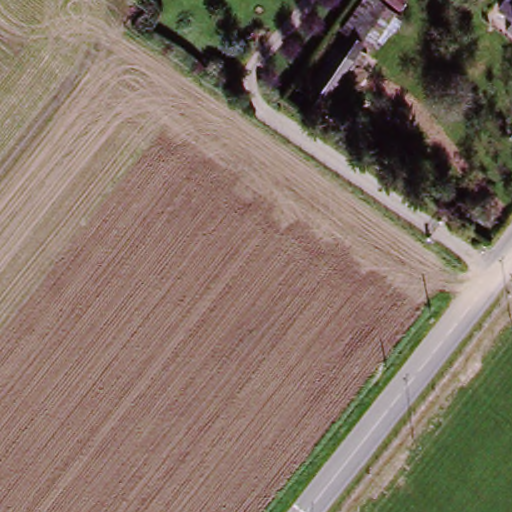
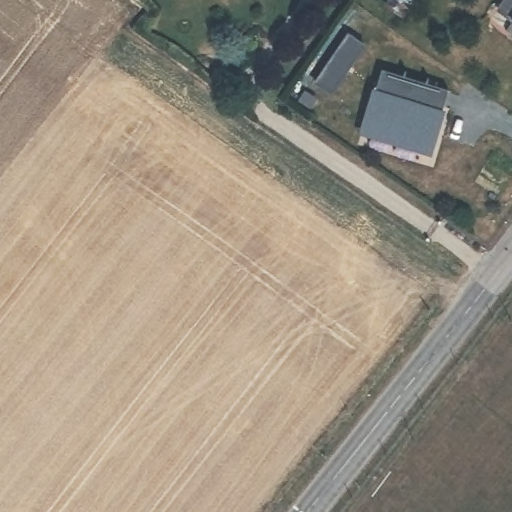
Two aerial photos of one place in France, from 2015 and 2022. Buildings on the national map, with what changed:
unchanged [(396,17),(386,32),(377,28),(368,44),(332,104),(309,89),(345,36),(339,33),(359,0),(381,0),(383,7),(396,17)]
unchanged [(512,0),(512,19),(503,13),(512,0)]
new [(387,75),(453,99),(432,158),(366,134),(387,75)]

